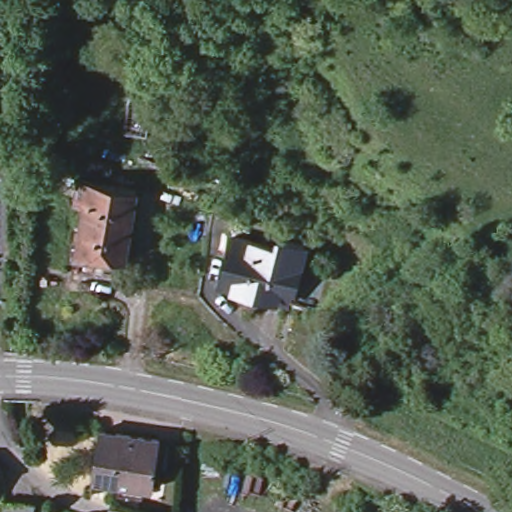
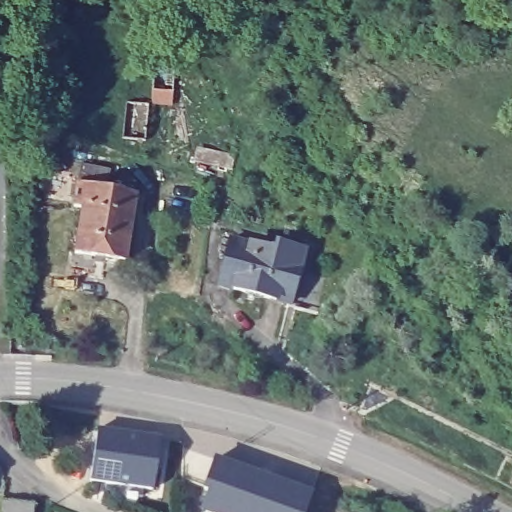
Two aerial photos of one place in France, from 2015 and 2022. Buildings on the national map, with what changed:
unchanged [(127,52),(125,70),(104,68),(106,50),(127,52)]
unchanged [(176,63),(172,102),(153,100),(156,61),(176,63)]
unchanged [(149,100),(146,138),(122,136),(126,98),(149,100)]
unchanged [(235,152),(233,164),(201,157),(204,145),(235,152)]
unchanged [(97,270),(99,257),(71,253),(79,206),(70,204),(73,182),(131,191),(119,261),(117,273),(97,270)]
unchanged [(274,250),(276,242),(304,249),(290,303),(220,284),(231,239),(274,250)]
unchanged [(159,440),(152,489),(90,481),(97,430),(159,440)]
new [(308,512),(217,512),(200,506),(215,455),(315,493),(308,512)]
unchanged [(34,512),(1,512),(2,504),(34,506),(34,512)]

